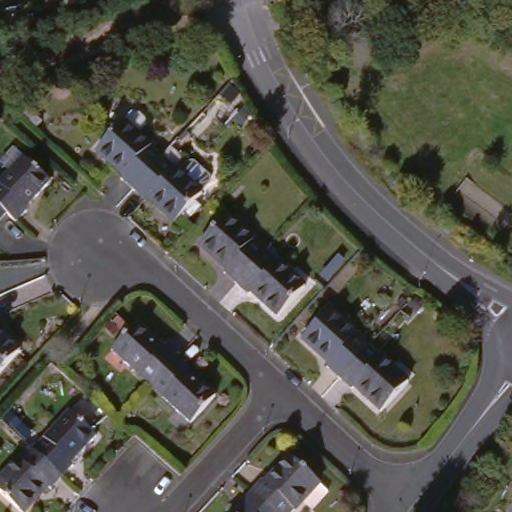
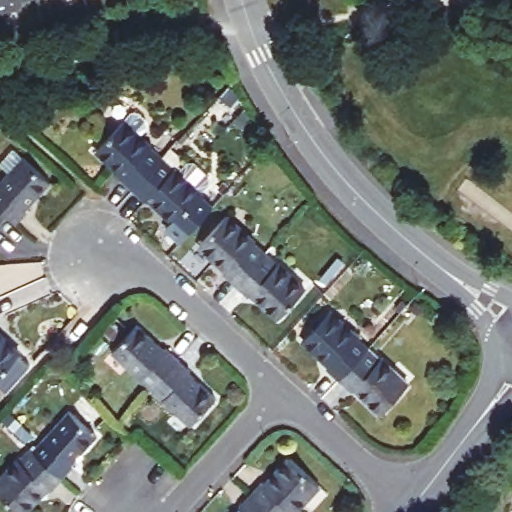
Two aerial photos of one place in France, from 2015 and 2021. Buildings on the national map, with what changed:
unchanged [(0,10),(0,0),(22,0),(23,3),(0,10)]
unchanged [(123,186),(127,182),(99,156),(128,126),(167,163),(136,197),(123,186)]
unchanged [(11,210),(0,199),(0,182),(14,168),(4,159),(18,145),(56,178),(31,204),(33,207),(21,219),(11,210)]
unchanged [(167,163),(182,177),(191,166),(198,166),(213,180),(213,187),(204,196),(207,199),(179,229),(152,205),(149,209),(136,197),(167,163)]
unchanged [(11,210),(0,222),(0,199),(11,210)]
unchanged [(226,279),(228,275),(203,252),(230,222),(269,258),(239,292),(226,279)]
unchanged [(269,258),(311,294),(283,324),(254,298),(251,302),(239,292),(269,258)]
unchanged [(330,370),(333,366),(306,341),(336,310),(374,346),(345,378),(343,381),(330,370)]
unchanged [(1,325),(0,325),(0,324),(1,325)]
unchanged [(109,353),(136,326),(163,350),(166,347),(177,358),(150,388),(149,389),(109,353)]
unchanged [(26,353),(0,380),(0,331),(26,353)]
unchanged [(345,378),(374,346),(414,384),(386,415),(358,389),(354,393),(343,381),(345,378)]
unchanged [(150,388),(177,358),(190,369),(187,371),(215,396),(189,425),(149,389),(150,388)]
unchanged [(37,455),(73,416),(101,442),(76,470),(79,473),(68,484),(37,455)]
unchanged [(264,496),(255,488),(266,477),(269,480),(294,452),(324,481),(296,512),(281,512),(264,496)]
unchanged [(56,497),(53,494),(35,512),(18,512),(0,495),(0,491),(35,453),(37,455),(68,484),(56,497)]
unchanged [(246,505),(243,501),(255,488),(264,496),(281,512),(240,512),(246,505)]

